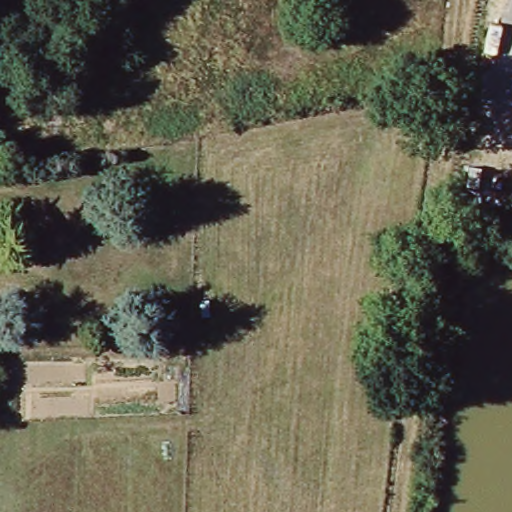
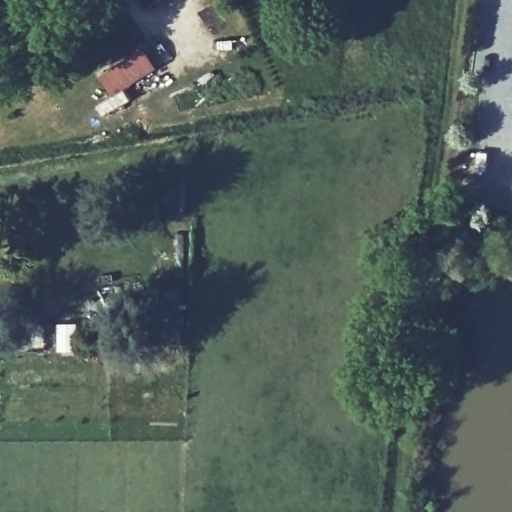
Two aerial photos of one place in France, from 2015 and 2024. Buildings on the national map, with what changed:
new [(158,67),(115,94),(102,73),(145,46),(158,67)]

